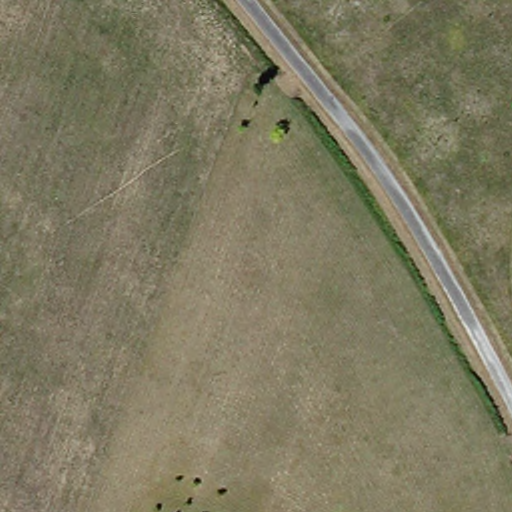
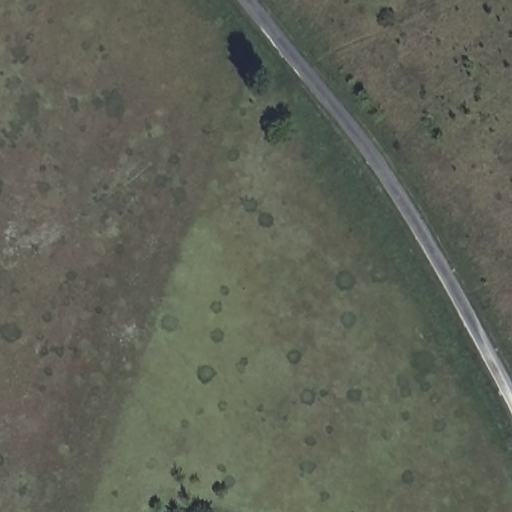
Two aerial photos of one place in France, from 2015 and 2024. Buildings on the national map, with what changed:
[]

